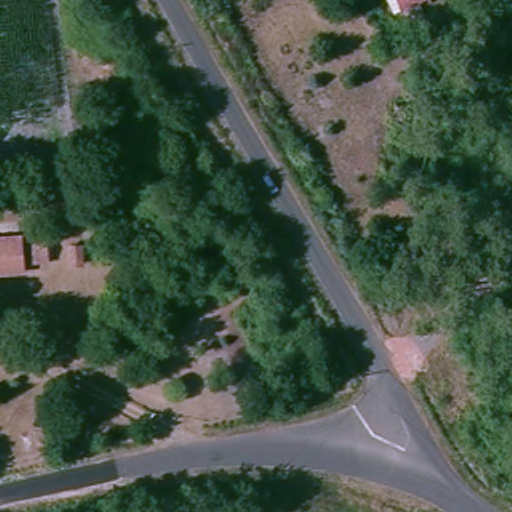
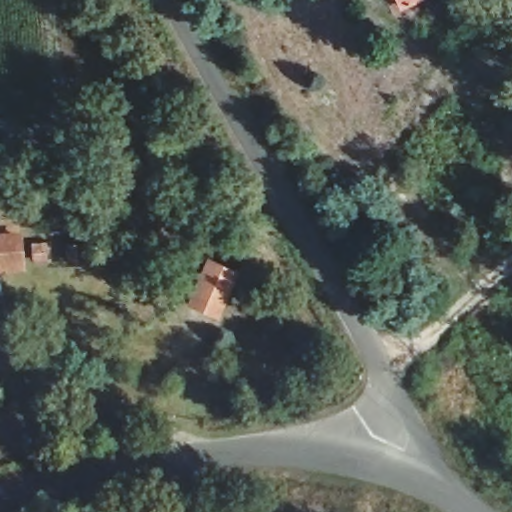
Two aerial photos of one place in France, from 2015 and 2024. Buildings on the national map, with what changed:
unchanged [(403,10),(398,0),(421,0),(403,10)]
unchanged [(30,275),(0,273),(0,238),(31,239),(30,275)]
new [(180,303),(203,255),(242,272),(220,320),(180,303)]

